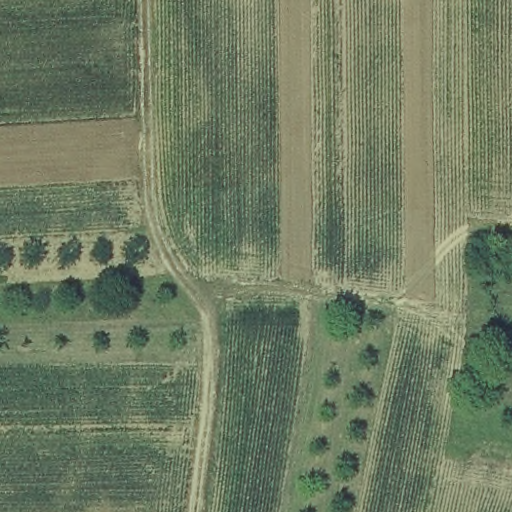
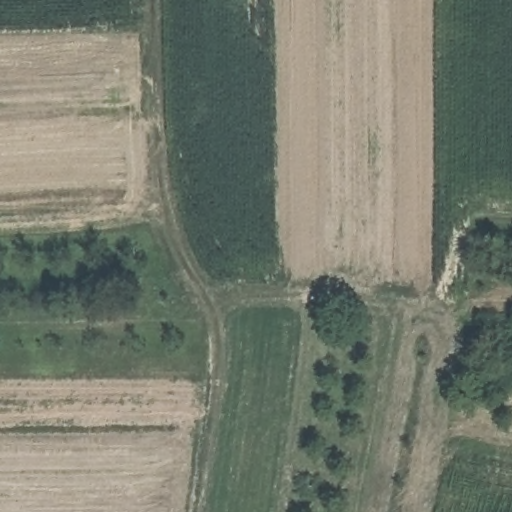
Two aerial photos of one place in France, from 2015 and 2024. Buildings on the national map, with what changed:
[]

